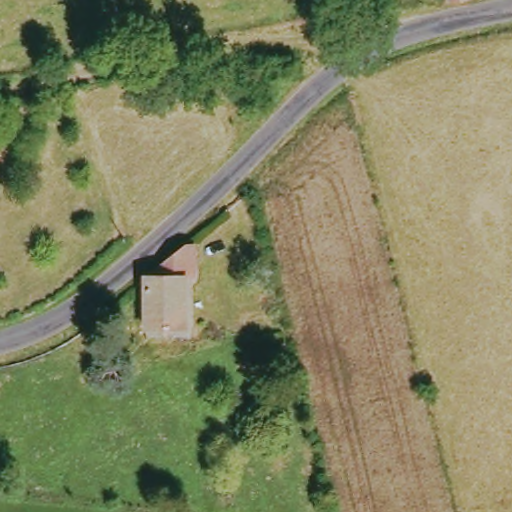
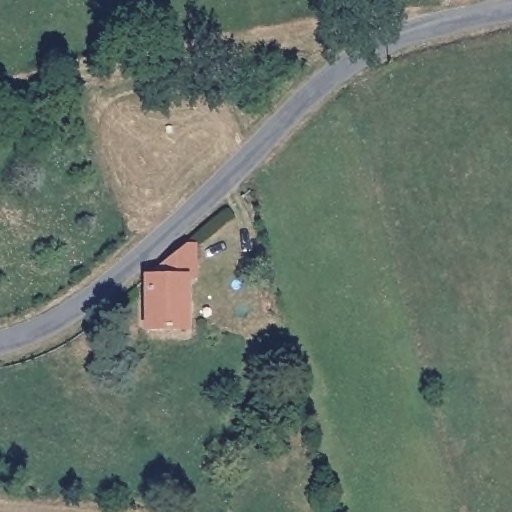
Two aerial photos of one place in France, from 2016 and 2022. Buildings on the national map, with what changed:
unchanged [(449,5),(448,0),(472,0),(472,2),(449,5)]
unchanged [(181,250),(194,251),(191,280),(181,283),(181,334),(140,334),(138,282),(181,250)]

